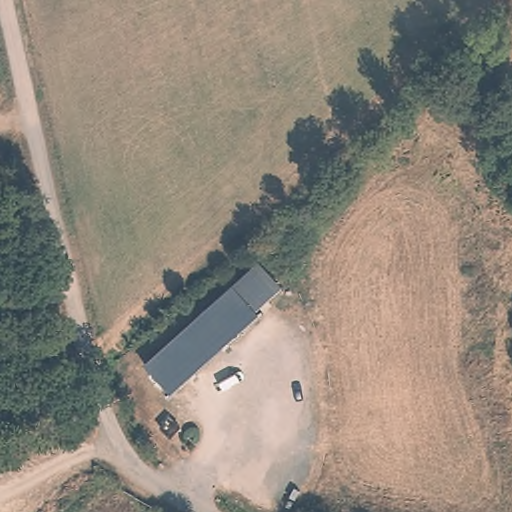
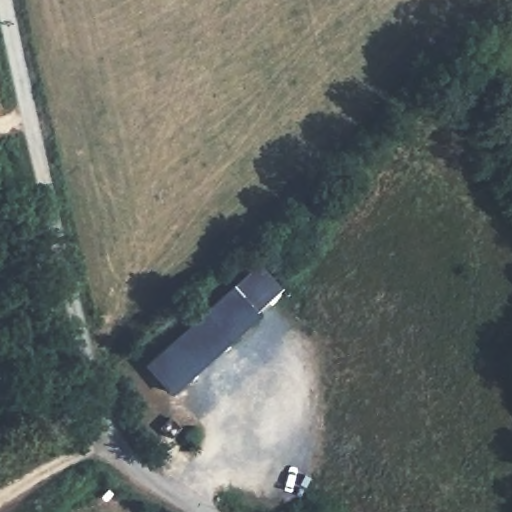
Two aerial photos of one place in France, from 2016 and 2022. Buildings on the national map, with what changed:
unchanged [(257,246),(280,271),(191,352),(172,369),(149,345),(174,322),(257,246)]
unchanged [(174,406),(161,415),(152,401),(165,393),(174,406)]

